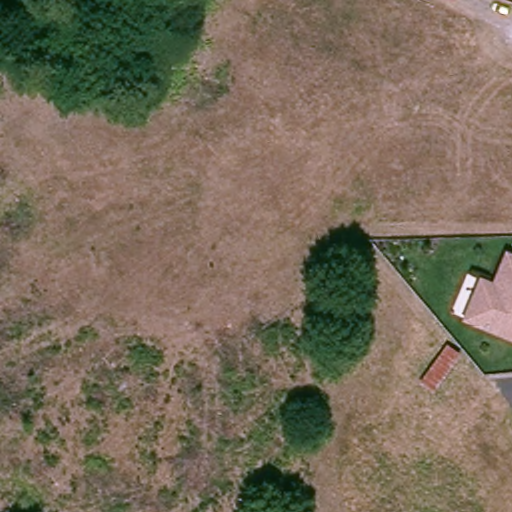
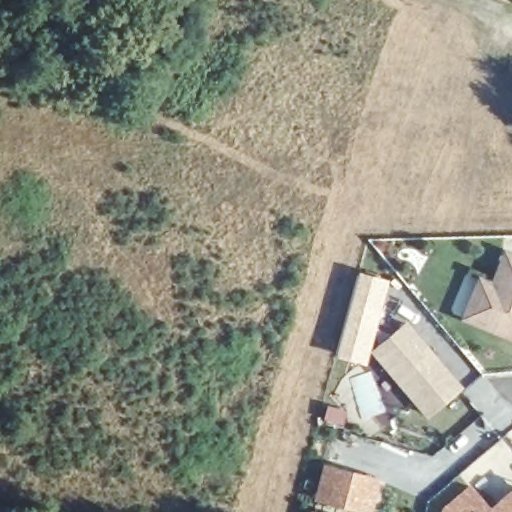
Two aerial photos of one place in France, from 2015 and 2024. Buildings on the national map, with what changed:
unchanged [(474,276),(483,280),(487,282),(500,250),(512,255),(512,337),(477,323),(458,315),(474,276)]
new [(366,363),(337,355),(360,271),(389,279),(366,363)]
new [(407,323),(461,387),(428,414),(374,351),(407,323)]
new [(327,465),(378,479),(370,511),(318,497),(327,465)]
new [(470,486),(490,509),(495,504),(512,491),(512,512),(444,512),(444,508),(470,486)]

